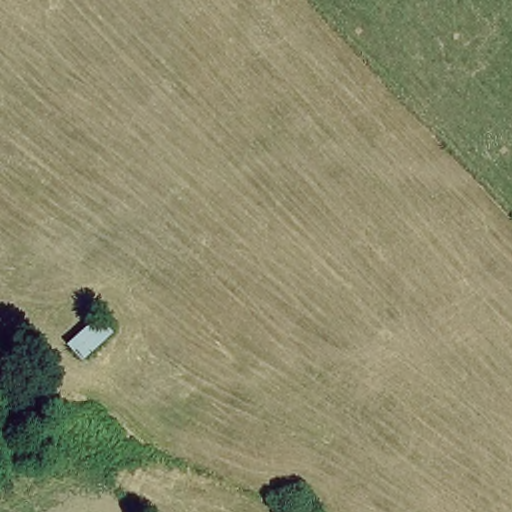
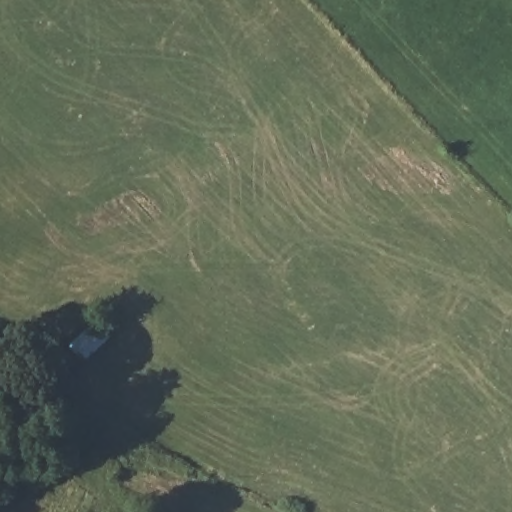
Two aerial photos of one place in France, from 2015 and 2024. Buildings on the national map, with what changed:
unchanged [(98,310),(113,335),(76,363),(59,346),(98,310)]

